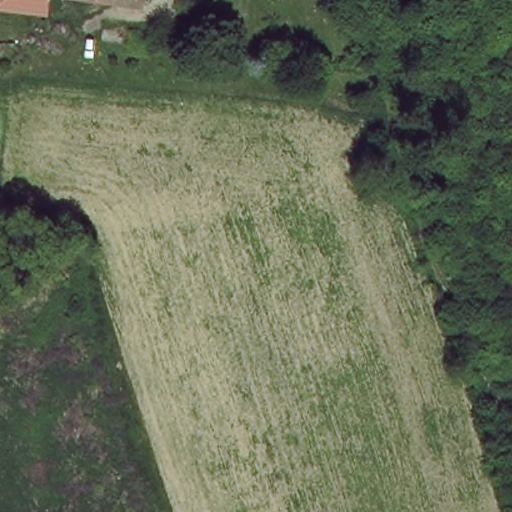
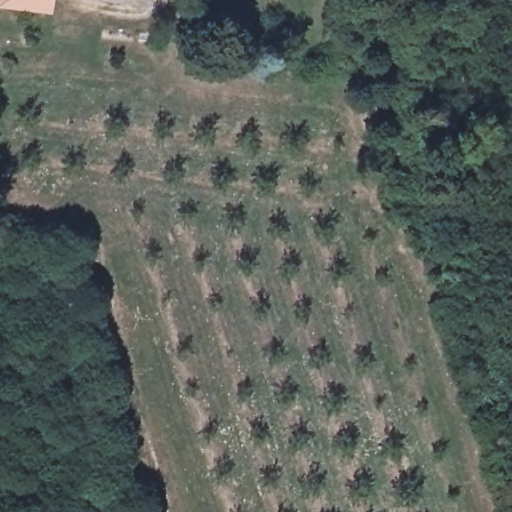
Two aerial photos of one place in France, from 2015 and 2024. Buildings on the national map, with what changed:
unchanged [(0,6),(1,0),(46,0),(45,9),(0,6)]

